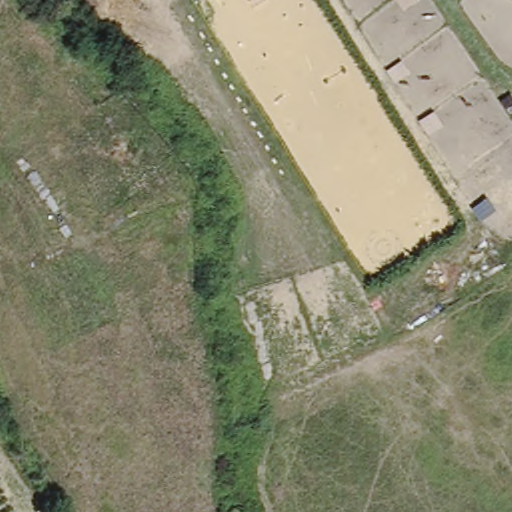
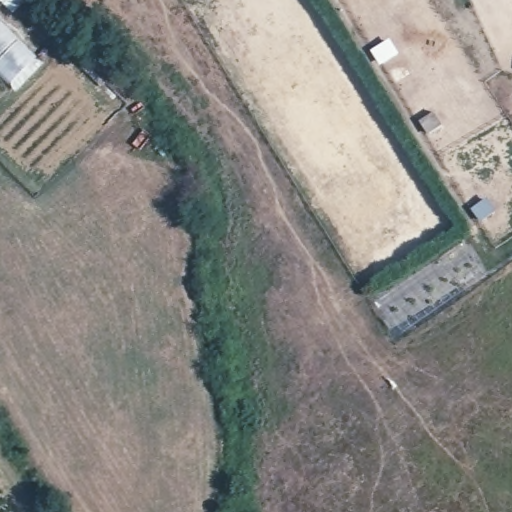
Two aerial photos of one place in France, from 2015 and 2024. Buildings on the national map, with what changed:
demolished [(421,0),(422,1),(406,11),(398,0),(421,0)]
new [(0,21),(37,56),(9,82),(0,73),(0,21)]

